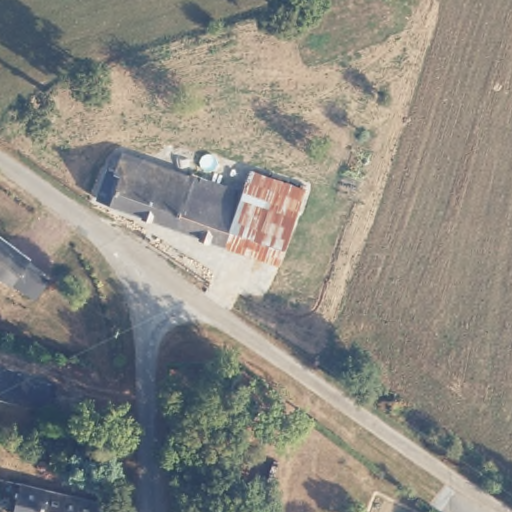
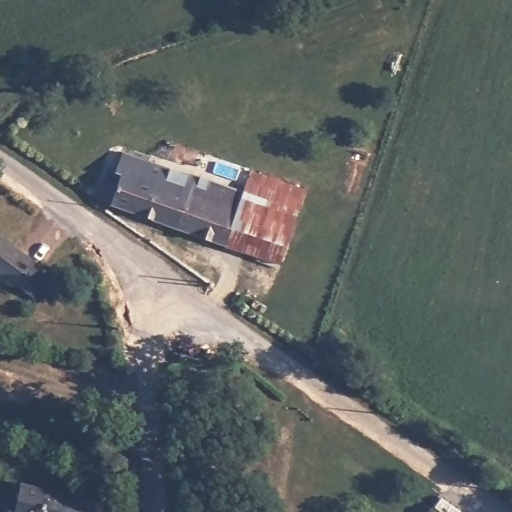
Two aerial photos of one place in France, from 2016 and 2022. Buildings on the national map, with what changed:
unchanged [(226,185),(245,190),(231,241),(96,201),(106,169),(116,171),(119,155),(226,185)]
unchanged [(245,190),(254,164),(311,181),(287,258),(231,241),(245,190)]
unchanged [(15,285),(0,272),(0,228),(37,257),(15,285)]
unchanged [(31,512),(19,508),(25,478),(111,505),(125,507),(125,512),(31,512)]

